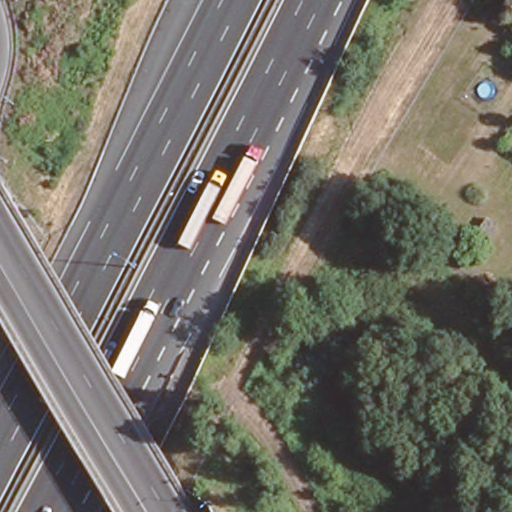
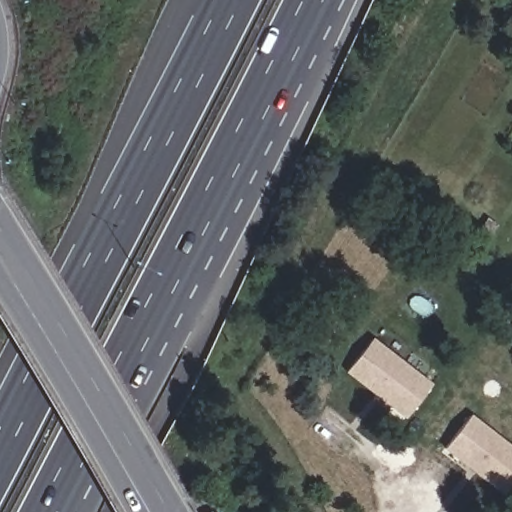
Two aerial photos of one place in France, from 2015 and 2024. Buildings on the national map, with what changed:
new [(377,338),(435,385),(410,417),(351,370),(377,338)]
new [(512,444),(512,489),(509,494),(449,447),(474,415),(512,444)]

